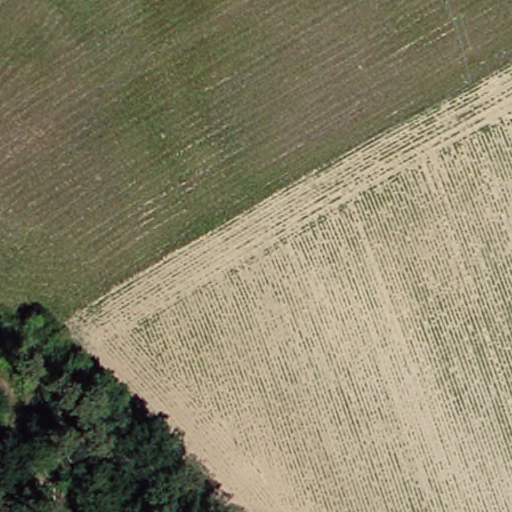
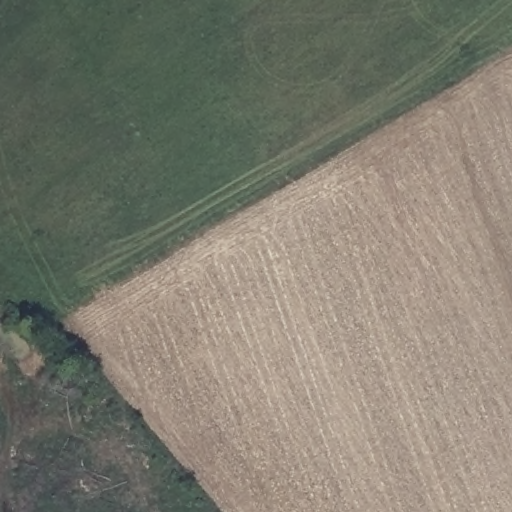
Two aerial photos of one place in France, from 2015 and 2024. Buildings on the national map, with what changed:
[]

